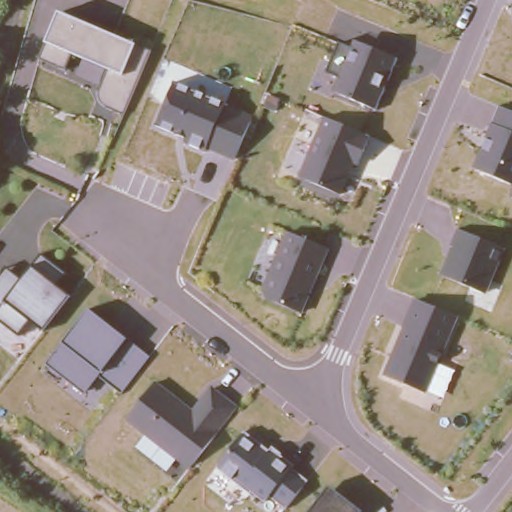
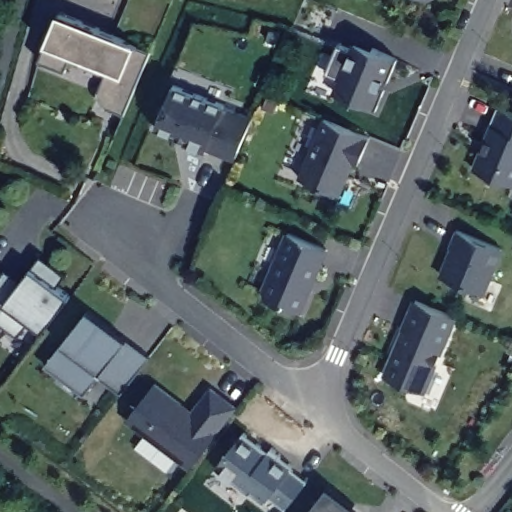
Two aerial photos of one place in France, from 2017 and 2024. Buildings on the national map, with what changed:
unchanged [(60,14),(150,52),(122,115),(105,107),(110,96),(102,95),(110,66),(75,53),(64,74),(40,62),(60,14)]
unchanged [(337,76),(329,75),(340,45),(350,47),(353,40),(394,57),(374,106),(333,91),(337,76)]
unchanged [(209,150),(205,153),(187,145),(184,138),(157,126),(176,87),(251,116),(235,160),(209,150)]
unchanged [(500,104),(512,109),(512,184),(475,168),(500,104)]
unchanged [(369,135),(358,165),(354,162),(340,194),(302,176),(325,119),(369,135)]
unchanged [(451,249),(449,246),(457,228),(504,246),(486,293),(440,274),(451,249)]
unchanged [(287,230),(328,247),(302,310),(262,294),(287,230)]
unchanged [(25,281),(34,270),(43,256),(65,275),(52,286),(67,298),(44,330),(29,321),(17,336),(0,323),(0,280),(7,270),(25,281)]
unchanged [(415,301),(455,316),(425,392),(386,375),(415,301)]
unchanged [(60,346),(89,308),(125,336),(150,358),(122,395),(97,376),(85,392),(47,364),(60,346)]
unchanged [(155,381),(189,407),(212,383),(238,403),(187,466),(127,418),(155,381)]
unchanged [(242,430),(307,480),(290,507),(272,493),(265,502),(217,468),(242,430)]
unchanged [(362,512),(309,512),(330,485),(362,512)]

